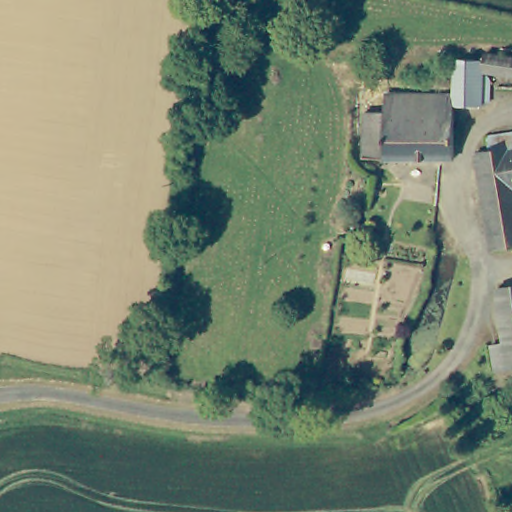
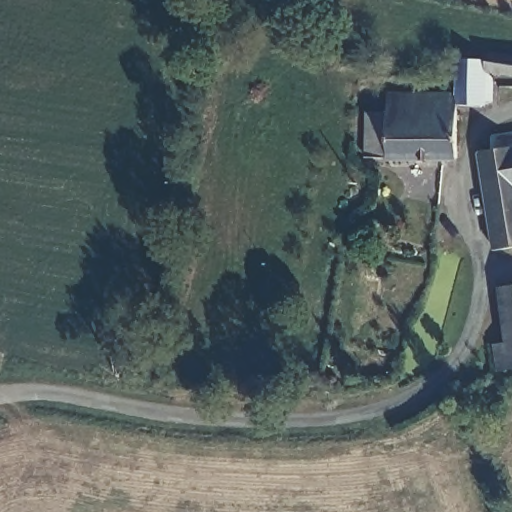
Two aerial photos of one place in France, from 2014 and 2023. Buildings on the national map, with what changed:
unchanged [(383,90),(452,90),(454,55),(483,55),(483,50),(512,53),(512,72),(481,68),(481,72),(489,79),(488,100),(480,100),(480,102),(454,103),(452,157),(433,156),(382,155),(361,155),(360,110),(383,110),(383,90)]
unchanged [(477,147),(490,145),(488,131),(512,126),(512,239),(494,242),(477,147)]
unchanged [(507,339),(499,285),(512,283),(512,364),(511,365),(497,366),(495,341),(507,339)]

